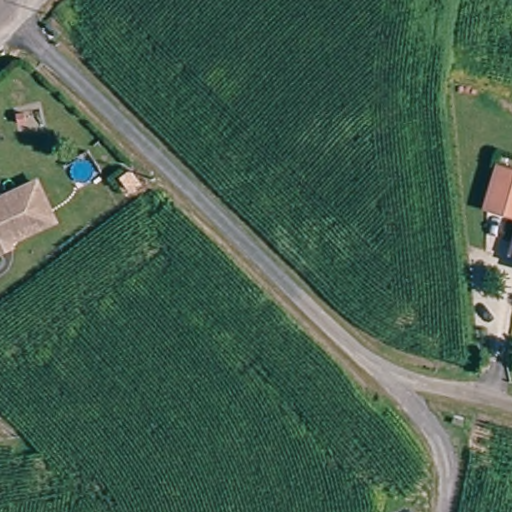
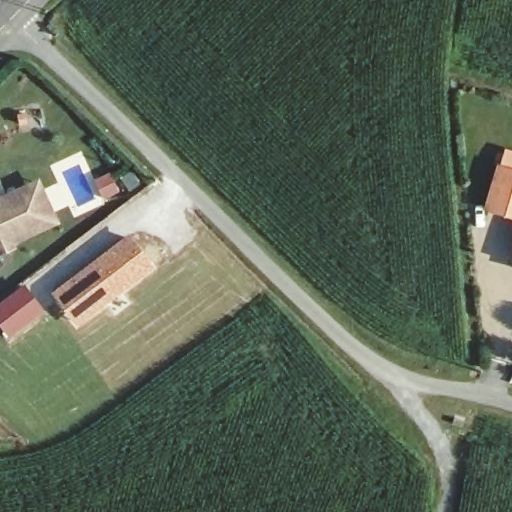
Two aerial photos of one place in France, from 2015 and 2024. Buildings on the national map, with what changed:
unchanged [(512,214),(490,208),(503,167),(512,170),(512,214)]
unchanged [(30,190),(43,185),(60,224),(41,232),(14,243),(11,242),(3,245),(1,249),(0,249),(0,203),(30,190)]
new [(128,233),(154,268),(96,313),(76,326),(49,291),(128,233)]
new [(24,282),(45,311),(8,338),(0,327),(0,300),(24,282)]

